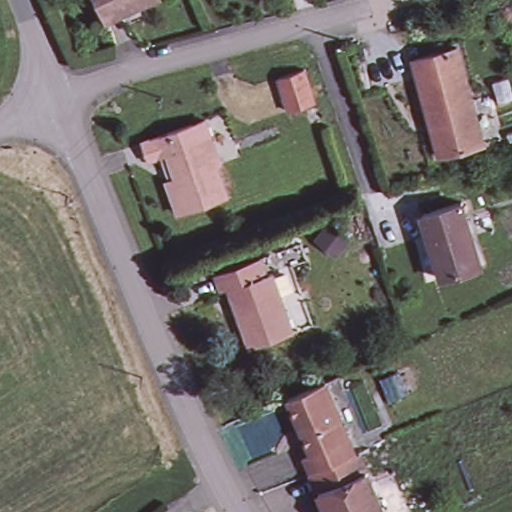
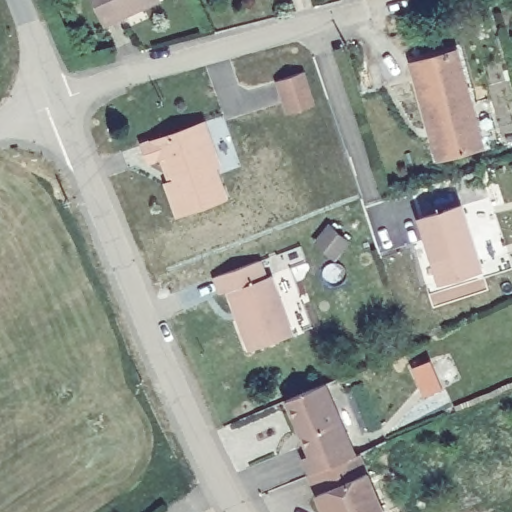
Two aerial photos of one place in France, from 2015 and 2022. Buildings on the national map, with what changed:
unchanged [(134,12),(137,18),(108,30),(94,0),(164,0),(165,0),(134,12)]
unchanged [(411,61),(452,49),(467,101),(482,97),(493,141),(477,145),(437,158),(430,135),(423,110),(411,61)]
unchanged [(304,74),(313,103),(288,111),(278,80),(277,78),(302,70),(304,74)]
unchanged [(145,141),(207,120),(222,163),(217,165),(227,196),(175,214),(165,183),(172,180),(164,156),(152,160),(145,141)]
unchanged [(479,267),(439,281),(422,219),(462,205),(479,267)]
unchanged [(353,246),(338,260),(322,245),(336,231),(353,246)]
unchanged [(268,277),(274,275),(295,336),(250,351),(230,292),(223,295),(217,278),(263,261),(268,277)]
unchanged [(331,382),(358,452),(315,470),(308,455),(315,451),(293,397),(331,382)]
unchanged [(332,512),(315,470),(358,452),(362,451),(386,512),(332,512)]

